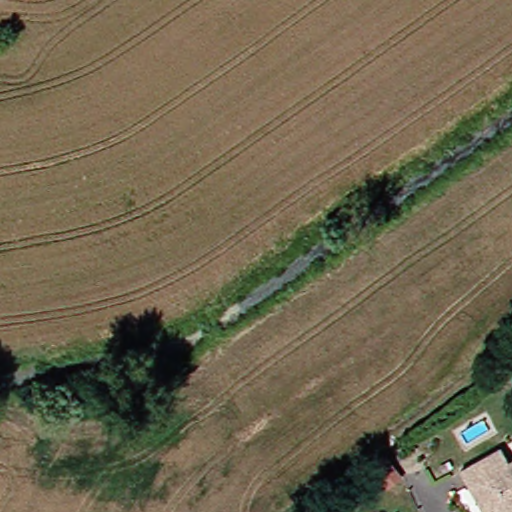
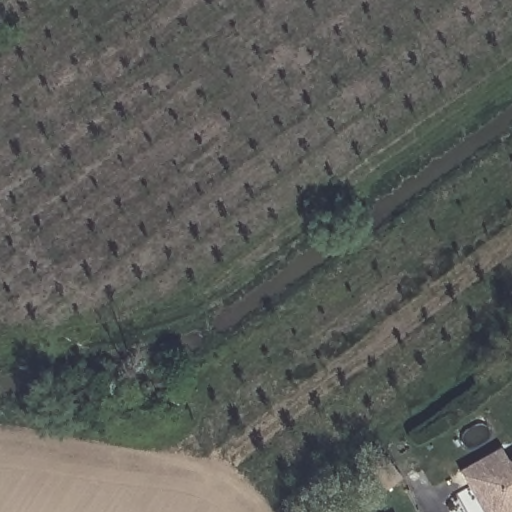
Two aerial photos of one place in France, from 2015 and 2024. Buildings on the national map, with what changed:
unchanged [(497,512),(491,502),(487,503),(485,499),(481,497),(475,500),(465,482),(478,474),(471,461),(512,437),(512,512),(497,512)]
unchanged [(377,490),(365,468),(378,458),(390,480),(377,490)]

